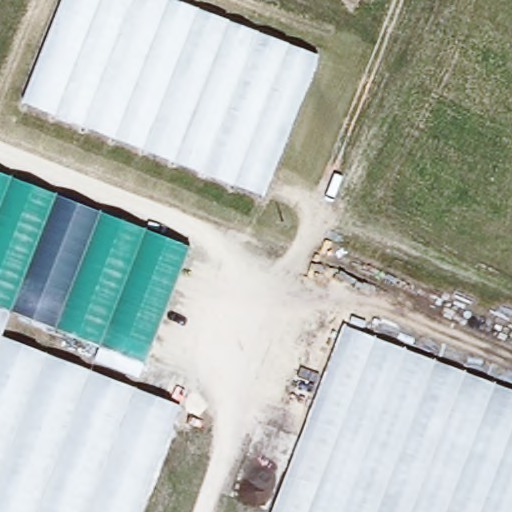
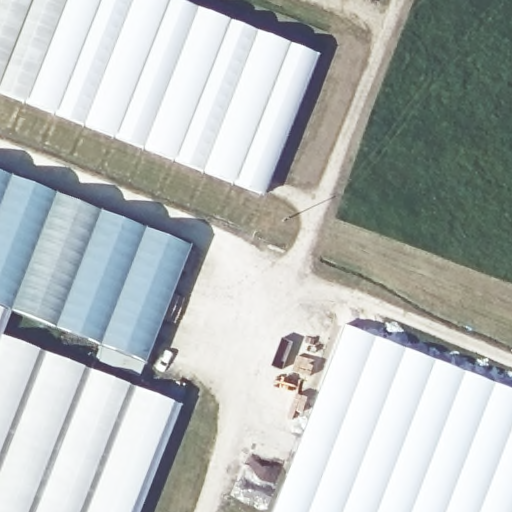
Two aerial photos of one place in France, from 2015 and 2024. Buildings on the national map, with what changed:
new [(0,92),(0,0),(63,0),(24,101),(0,92)]
unchanged [(262,195),(24,101),(63,0),(178,0),(317,54),(262,195)]
unchanged [(0,170),(195,249),(150,366),(15,312),(0,306),(0,170)]
unchanged [(0,336),(0,306),(15,312),(3,337),(0,336)]
unchanged [(512,390),(512,512),(275,512),(351,325),(512,390)]
unchanged [(142,512),(0,512),(0,336),(3,337),(183,410),(142,512)]

